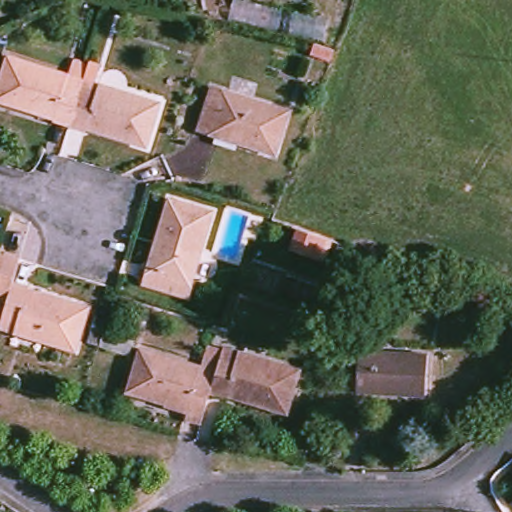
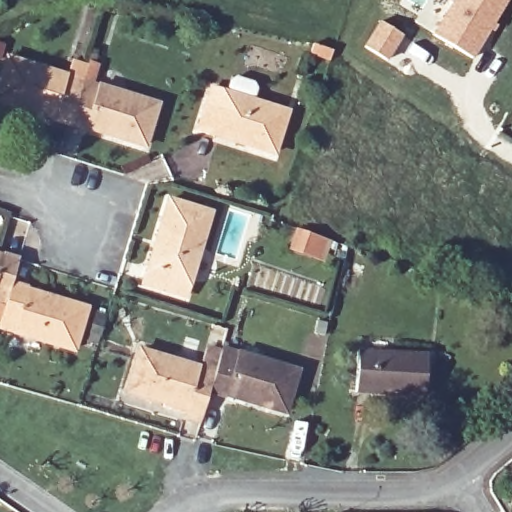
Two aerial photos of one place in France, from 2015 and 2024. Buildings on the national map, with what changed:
new [(444,24),(432,14),(441,0),(511,0),(475,61),(437,38),(444,24)]
unchanged [(317,38),(335,43),(334,46),(334,51),(314,46),(317,38)]
unchanged [(0,105),(0,100),(10,66),(69,84),(73,73),(89,78),(91,67),(102,71),(98,87),(88,84),(86,89),(74,131),(54,126),(56,122),(0,105)]
unchanged [(86,89),(155,109),(144,147),(88,131),(87,135),(74,131),(86,89)]
unchanged [(287,114),(275,153),(218,136),(217,141),(199,135),(212,91),(287,114)]
unchanged [(169,205),(209,217),(185,297),(141,284),(146,268),(149,269),(169,205)]
unchanged [(291,241),(299,223),(318,230),(327,234),(319,252),(310,249),(291,241)]
unchanged [(0,261),(3,262),(4,257),(16,261),(9,285),(4,303),(0,302),(0,261)]
unchanged [(4,303),(9,285),(28,290),(26,295),(83,311),(72,350),(0,329),(0,308),(3,309),(4,303)]
unchanged [(220,351),(292,371),(281,412),(227,396),(225,400),(207,395),(213,374),(220,351)]
unchanged [(353,394),(355,351),(426,357),(423,399),(353,394)]
unchanged [(200,418),(182,413),(184,409),(127,392),(139,353),(213,374),(207,395),(200,418)]

